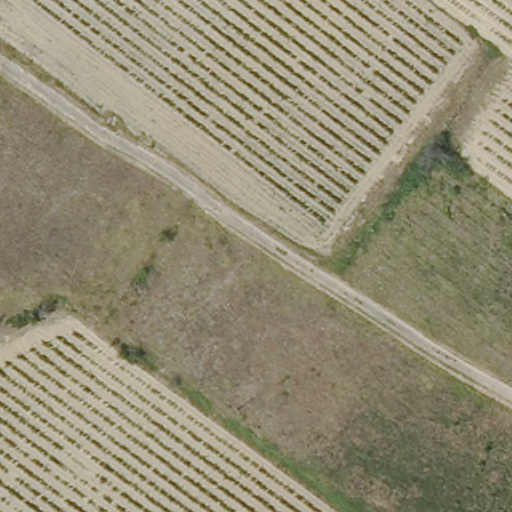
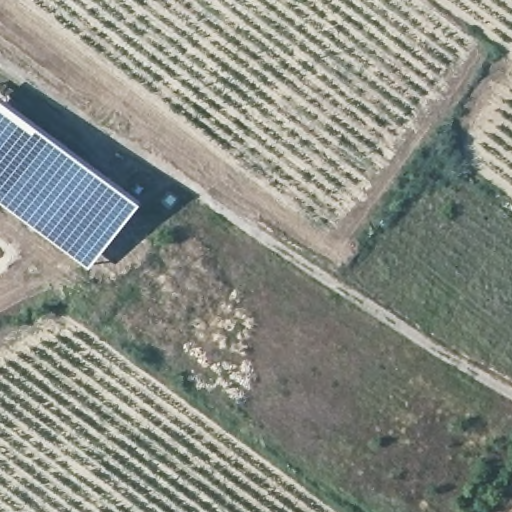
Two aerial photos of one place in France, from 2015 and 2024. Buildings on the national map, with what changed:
new [(133,204),(85,267),(0,204),(0,104),(133,204)]

